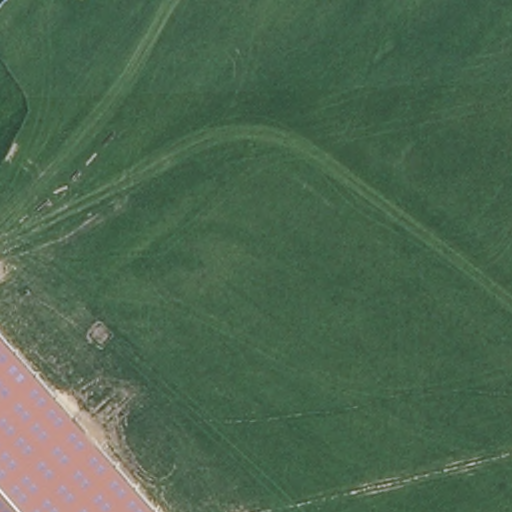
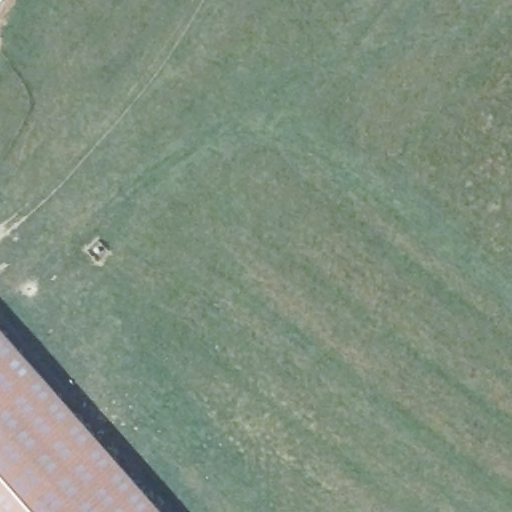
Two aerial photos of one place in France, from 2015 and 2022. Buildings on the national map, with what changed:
unchanged [(0,328),(162,512),(0,512),(0,328)]

